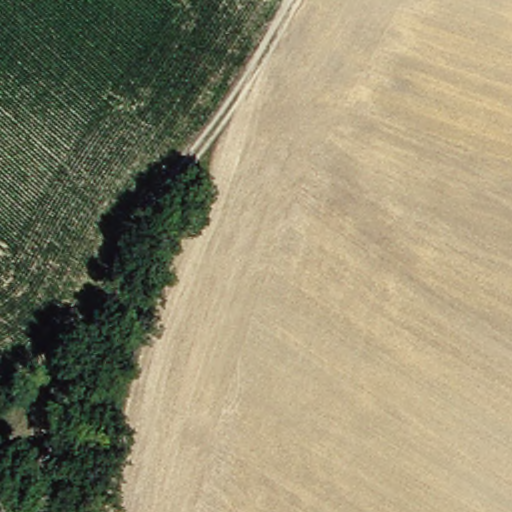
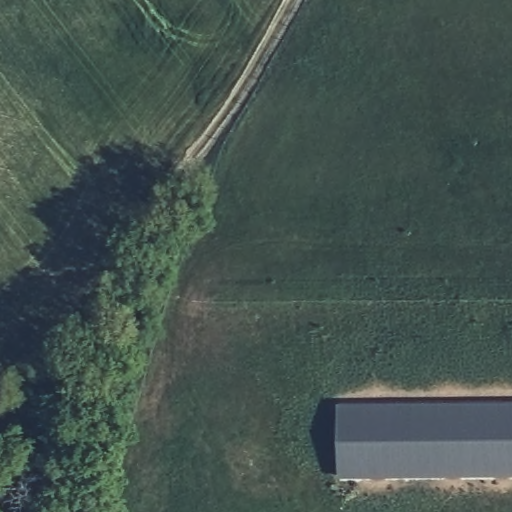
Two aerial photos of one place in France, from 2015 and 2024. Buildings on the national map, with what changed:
new [(512,403),(512,478),(340,480),(337,404),(512,403)]

